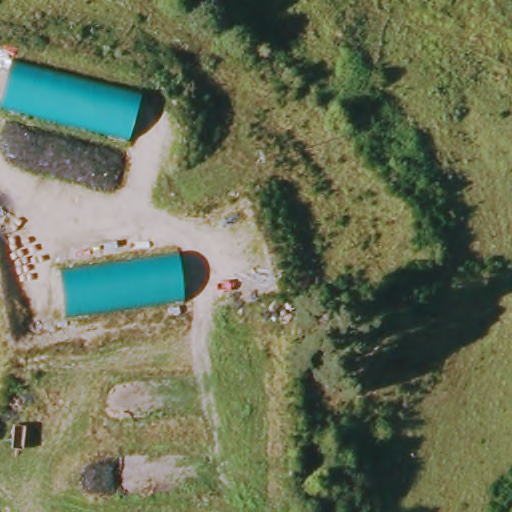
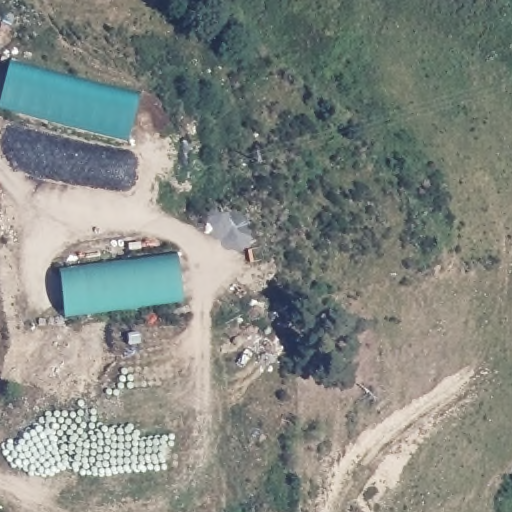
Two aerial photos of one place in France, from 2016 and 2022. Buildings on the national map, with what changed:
unchanged [(128,142),(0,109),(0,105),(11,66),(139,100),(128,142)]
unchanged [(176,252),(183,303),(66,317),(60,266),(176,252)]

